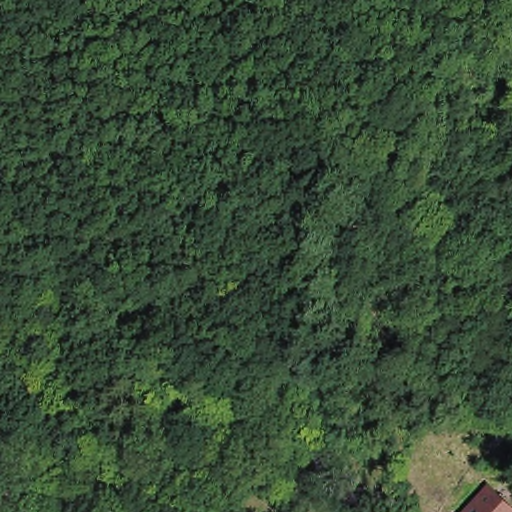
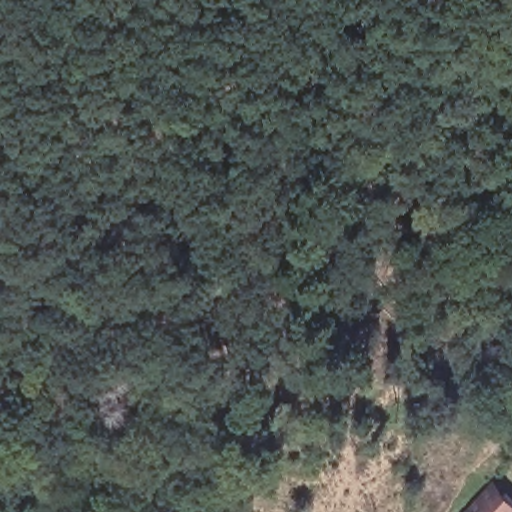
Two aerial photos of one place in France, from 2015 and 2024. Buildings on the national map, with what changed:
unchanged [(512,497),(512,512),(472,512),(497,483),(512,497)]

